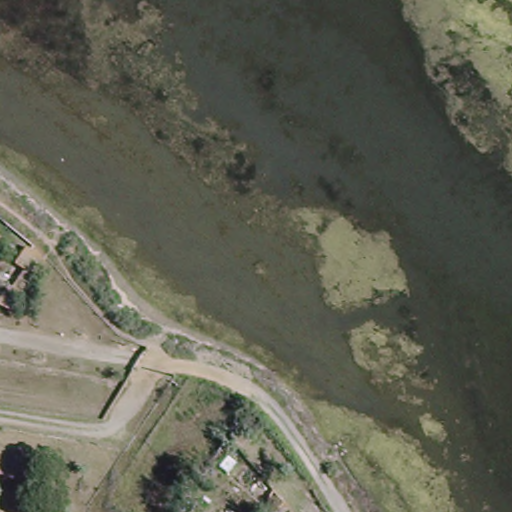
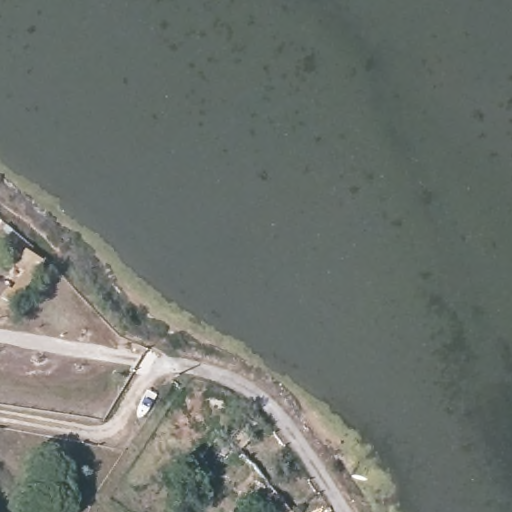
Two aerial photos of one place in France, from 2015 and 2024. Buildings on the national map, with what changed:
unchanged [(28,290),(18,305),(3,298),(13,281),(28,290)]
unchanged [(272,492),(263,507),(253,501),(263,487),(272,492)]
unchanged [(316,497),(324,510),(321,512),(313,512),(306,502),(316,497)]
unchanged [(290,512),(276,512),(283,503),(289,510),(290,512)]

